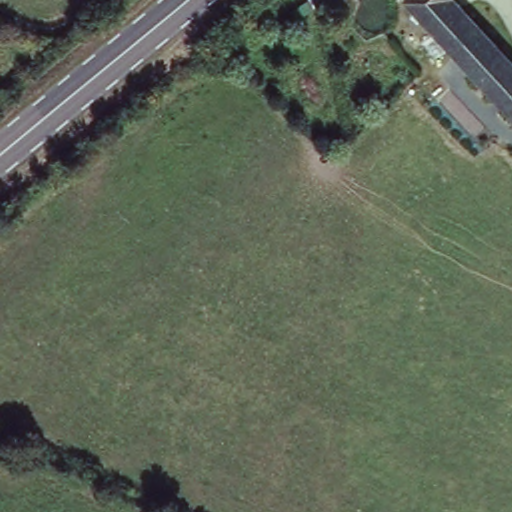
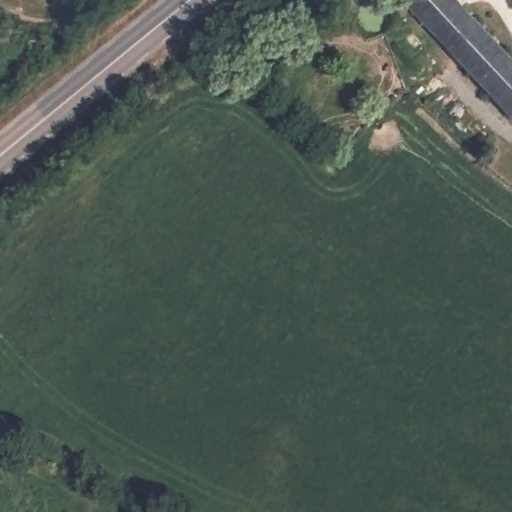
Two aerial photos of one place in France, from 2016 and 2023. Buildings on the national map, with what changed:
unchanged [(434,7),(420,21),(400,0),(442,0),(434,7)]
unchanged [(442,0),(459,0),(512,51),(512,55),(497,69),(484,82),(420,21),(434,7),(442,0)]
unchanged [(497,69),(512,55),(512,110),(484,82),(497,69)]

